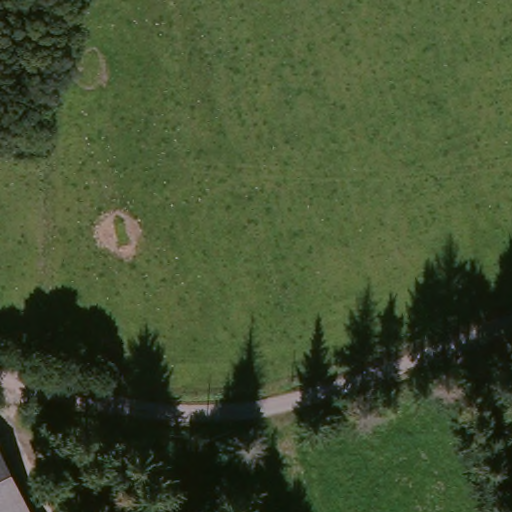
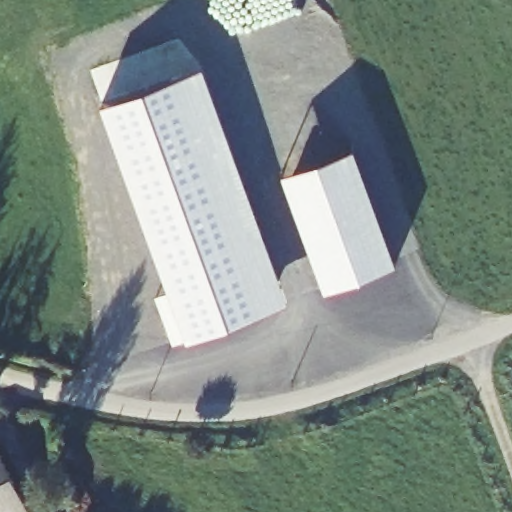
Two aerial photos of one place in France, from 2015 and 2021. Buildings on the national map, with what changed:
new [(161,326),(153,302),(167,297),(100,109),(201,72),(285,310),(184,345),(169,350),(161,326)]
new [(352,153),(394,270),(323,296),(281,178),(352,153)]
unchanged [(1,435),(36,512),(0,512),(0,436),(1,435)]

